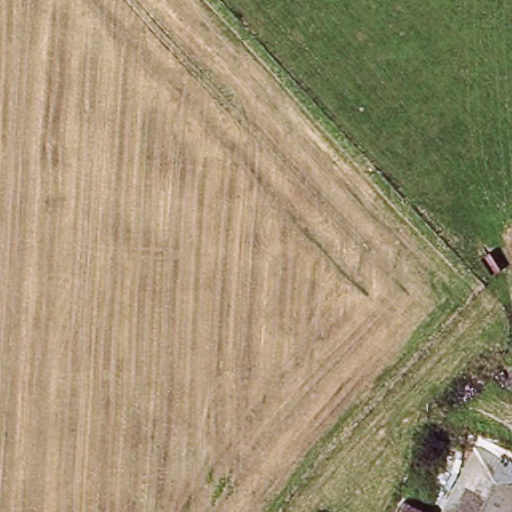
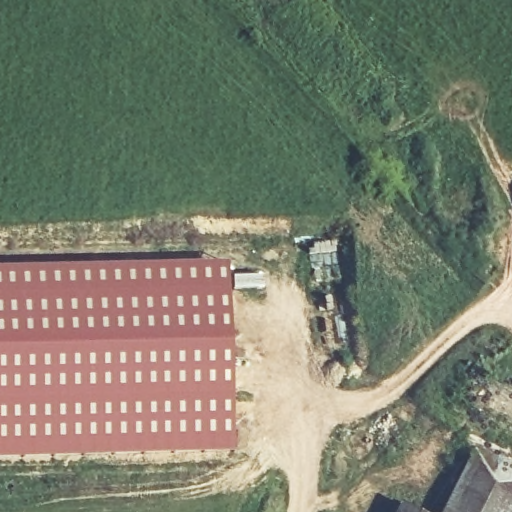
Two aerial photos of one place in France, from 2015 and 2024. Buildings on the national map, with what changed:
new [(235,452),(0,458),(0,266),(230,260),(235,452)]
unchanged [(512,469),(512,512),(443,512),(472,451),(512,469)]
unchanged [(411,512),(396,512),(399,506),(411,512)]

